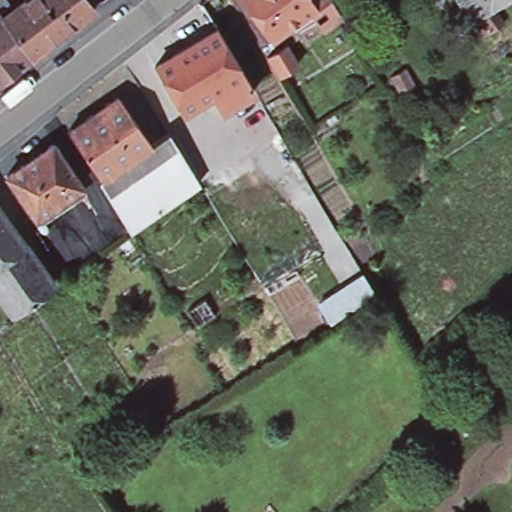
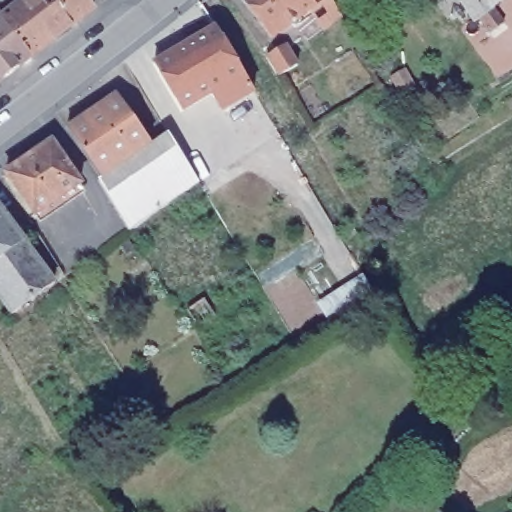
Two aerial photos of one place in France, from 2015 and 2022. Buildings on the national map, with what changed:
unchanged [(0,9),(0,0),(4,6),(0,9)]
unchanged [(28,58),(0,21),(0,16),(21,0),(82,0),(90,10),(28,58)]
unchanged [(276,42),(246,0),(312,0),(320,11),(276,42)]
unchanged [(461,0),(498,0),(475,18),(461,0)]
unchanged [(0,80),(0,21),(28,58),(0,80)]
unchanged [(241,68),(249,82),(217,101),(207,84),(176,102),(153,64),(216,27),(241,68)]
unchanged [(285,46),(296,63),(278,75),(266,57),(285,46)]
unchanged [(406,67),(415,84),(400,92),(390,77),(406,67)]
unchanged [(117,97),(150,147),(100,178),(68,129),(117,97)]
unchanged [(100,178),(150,147),(169,135),(200,186),(130,232),(98,179),(100,178)]
unchanged [(52,143),(82,184),(37,216),(7,175),(52,143)]
unchanged [(0,261),(0,207),(25,242),(0,261)]
unchanged [(56,285),(12,315),(0,298),(0,261),(25,242),(56,285)]
unchanged [(206,302),(215,317),(198,328),(188,312),(206,302)]

